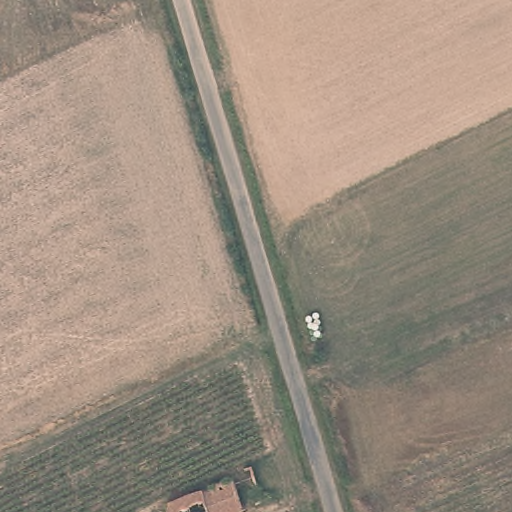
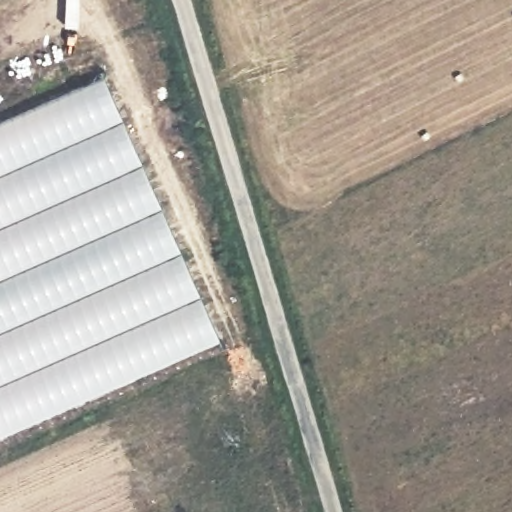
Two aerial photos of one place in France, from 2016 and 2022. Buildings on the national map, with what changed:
new [(104,76),(220,341),(0,438),(0,123),(104,76)]
unchanged [(233,473),(251,467),(263,502),(238,512),(168,512),(164,502),(233,475),(233,473)]

